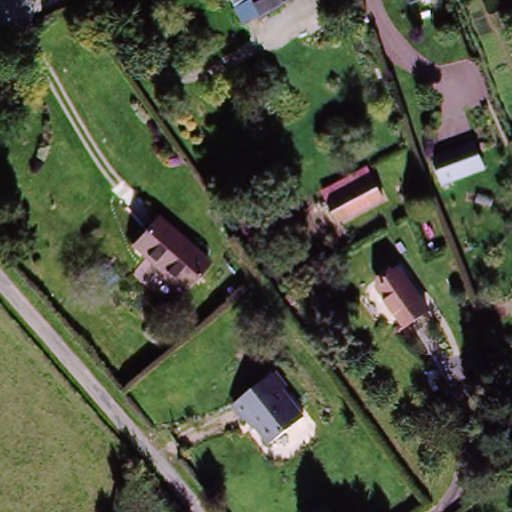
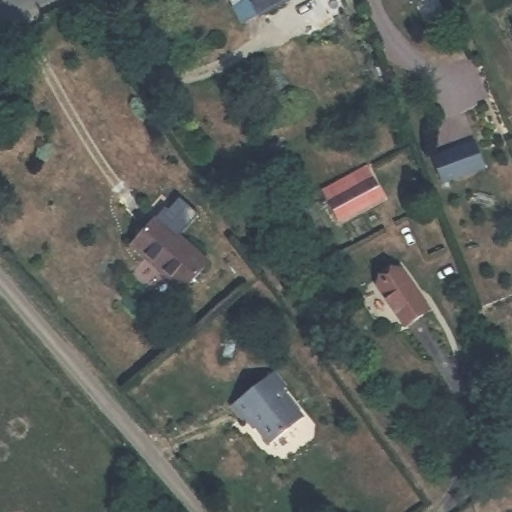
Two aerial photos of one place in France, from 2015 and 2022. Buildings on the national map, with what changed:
unchanged [(256,0),(289,0),(241,26),(227,0),(251,0),(251,2),(256,0)]
unchanged [(429,158),(454,147),(469,142),(479,169),(464,174),(439,184),(429,158)]
unchanged [(339,221),(329,200),(324,191),(363,169),(369,180),(379,197),(339,221)]
unchanged [(203,270),(179,298),(129,255),(153,227),(203,270)]
unchanged [(430,307),(411,326),(376,291),(396,272),(430,307)]
unchanged [(311,420),(278,446),(256,418),(251,421),(240,407),(281,375),(292,388),(289,391),(311,420)]
unchanged [(226,486),(234,495),(226,503),(217,495),(226,486)]

